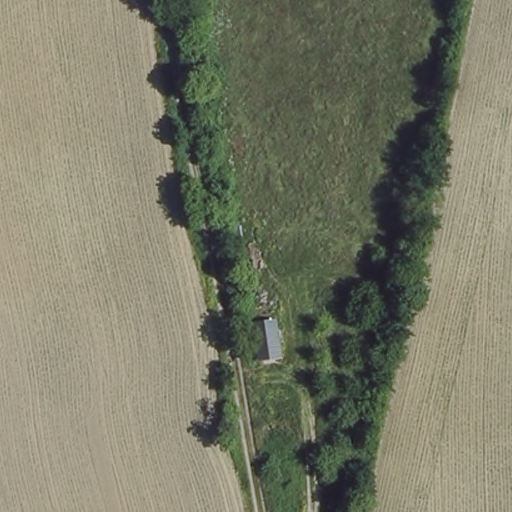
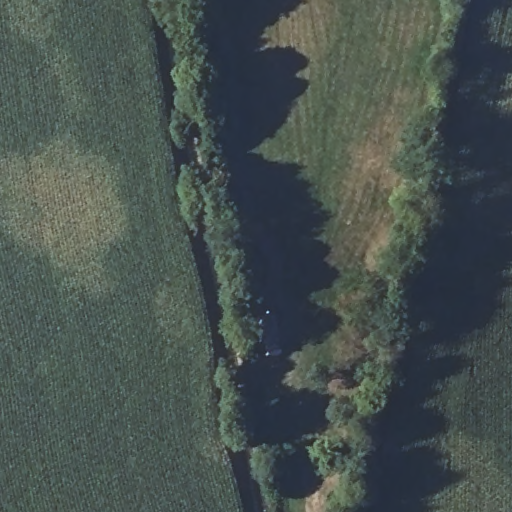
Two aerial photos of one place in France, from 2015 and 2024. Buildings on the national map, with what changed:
unchanged [(275,332),(280,349),(260,353),(254,325),(259,324),(272,321),(275,332)]

